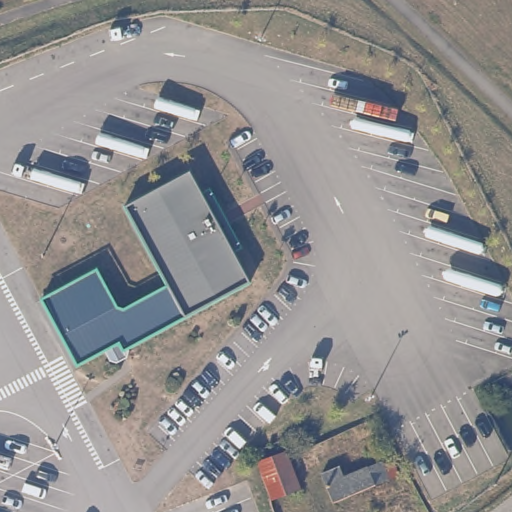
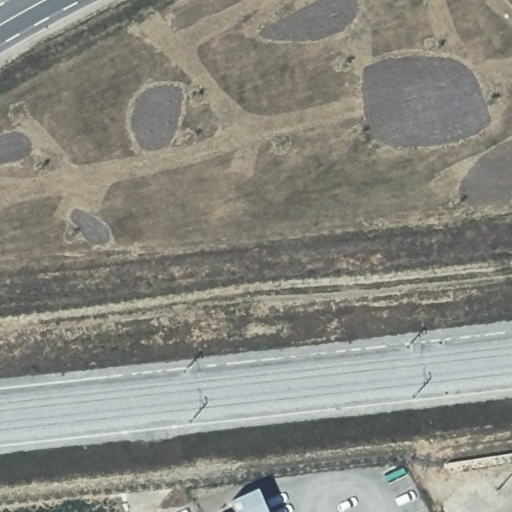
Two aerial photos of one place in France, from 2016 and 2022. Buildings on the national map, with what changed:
demolished [(99,268),(117,301),(124,303),(167,280),(147,242),(127,205),(143,196),(193,170),(212,207),(221,210),(228,223),(225,232),(252,282),(203,308),(129,347),(131,349),(128,356),(118,361),(111,359),(106,349),(79,364),(43,297),(99,268)]
demolished [(305,490),(281,503),(260,465),(285,453),(305,490)]
demolished [(331,507),(315,478),(333,469),(336,477),(376,455),(381,464),(388,477),(331,507)]

